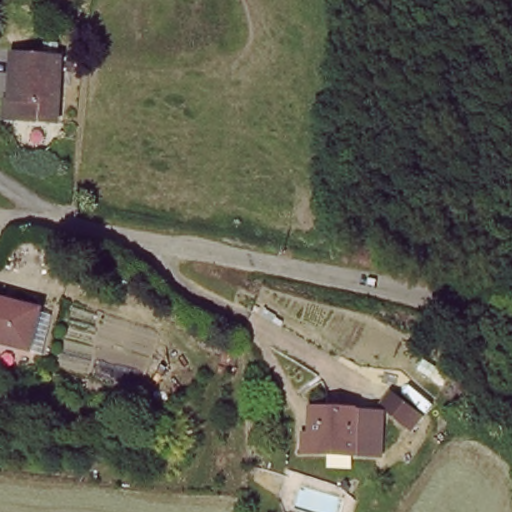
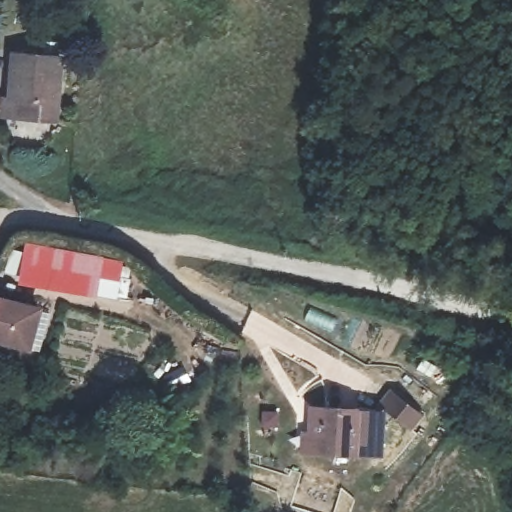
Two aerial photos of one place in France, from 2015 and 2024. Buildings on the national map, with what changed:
unchanged [(2,97),(13,97),(17,54),(58,57),(53,121),(12,118),(0,118),(2,97)]
new [(25,243),(122,257),(122,267),(129,269),(127,278),(129,278),(125,297),(116,295),(115,299),(93,295),(17,282),(25,243)]
demolished [(322,322),(310,339),(280,319),(290,302),(322,322)]
unchanged [(0,346),(0,309),(41,318),(32,354),(0,346)]
unchanged [(403,423),(380,393),(392,382),(417,412),(403,423)]
unchanged [(307,427),(321,429),(322,423),(328,424),(330,406),(364,414),(357,459),(318,451),(302,448),(307,427)]

